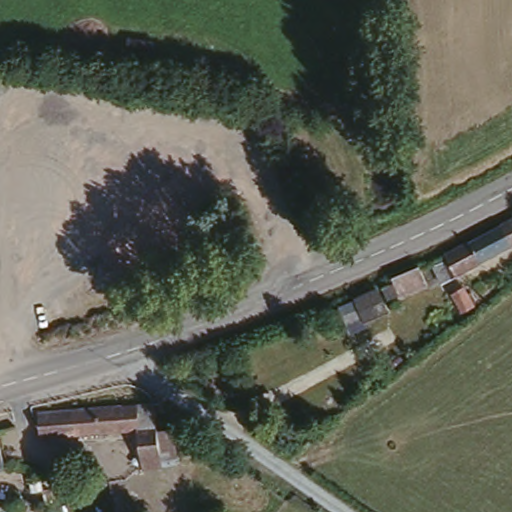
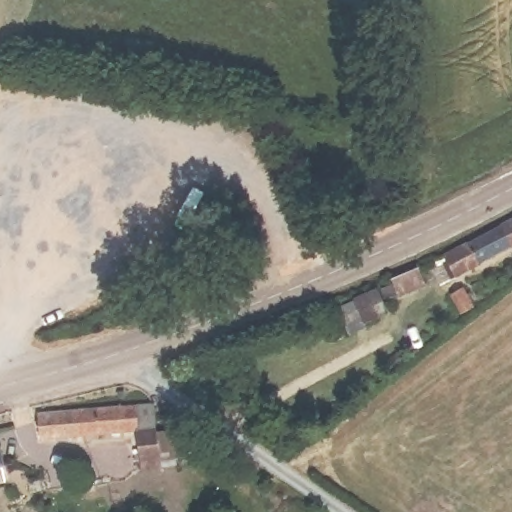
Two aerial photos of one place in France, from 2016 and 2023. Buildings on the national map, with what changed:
unchanged [(151,48),(145,69),(120,63),(126,41),(151,48)]
unchanged [(441,255),(512,216),(512,245),(453,277),(441,255)]
unchanged [(420,264),(429,283),(404,296),(395,276),(420,264)]
unchanged [(389,310),(352,325),(342,302),(380,287),(389,310)]
unchanged [(463,288),(475,305),(461,313),(451,299),(463,288)]
unchanged [(158,430),(176,428),(179,457),(160,458),(161,467),(138,468),(137,447),(143,446),(139,430),(43,435),(41,413),(155,405),(158,430)]
unchanged [(3,463),(0,464),(0,453),(3,463)]

